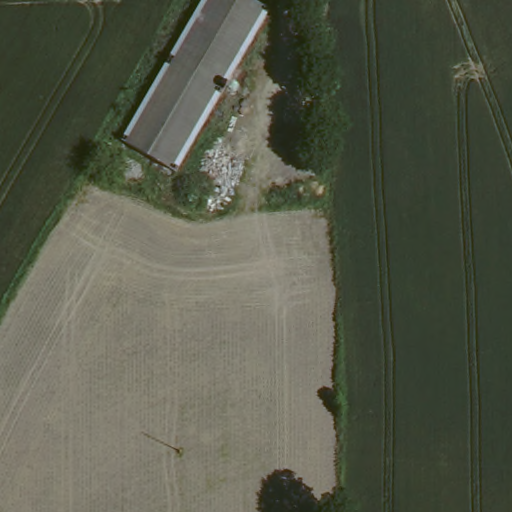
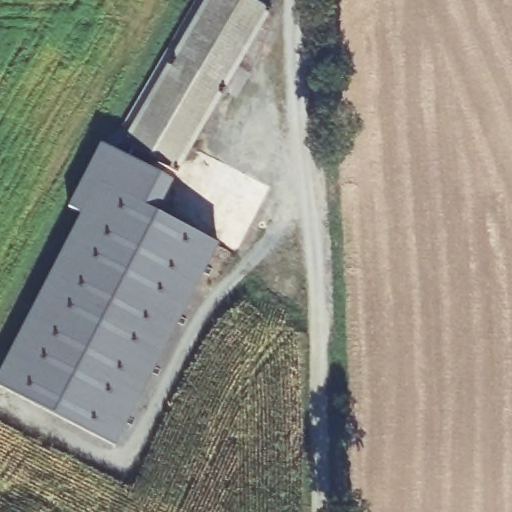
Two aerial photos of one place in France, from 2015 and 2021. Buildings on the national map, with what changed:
unchanged [(269,17),(174,176),(121,143),(208,0),(242,0),(269,17)]
new [(114,447),(0,386),(0,375),(98,185),(218,245),(114,447)]

